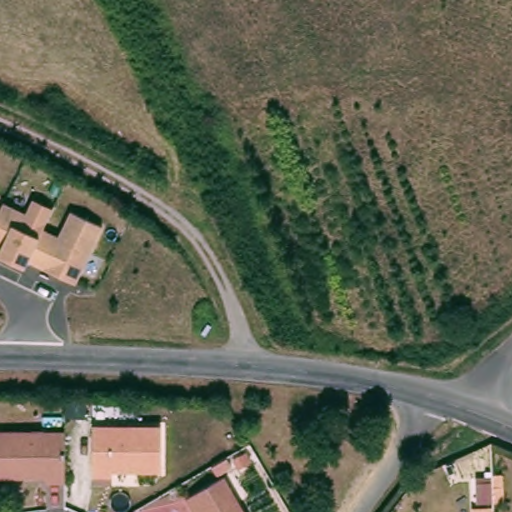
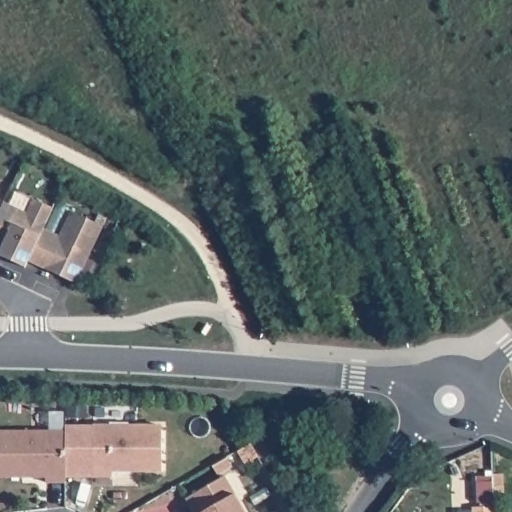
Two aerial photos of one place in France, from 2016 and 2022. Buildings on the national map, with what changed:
unchanged [(32,197),(55,206),(45,226),(60,233),(70,211),(103,225),(77,282),(29,263),(25,267),(0,256),(0,200),(26,209),(32,197)]
unchanged [(166,465),(117,465),(117,471),(97,471),(97,420),(166,420),(166,465)]
unchanged [(70,470),(70,477),(50,477),(50,471),(1,471),(1,426),(70,426),(70,470)]
unchanged [(229,475),(250,512),(199,512),(190,498),(229,475)]

